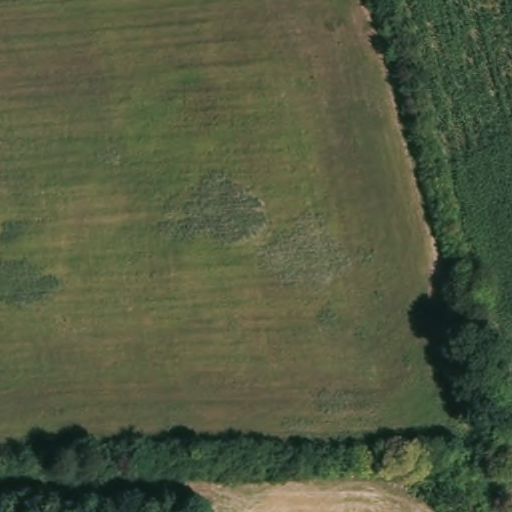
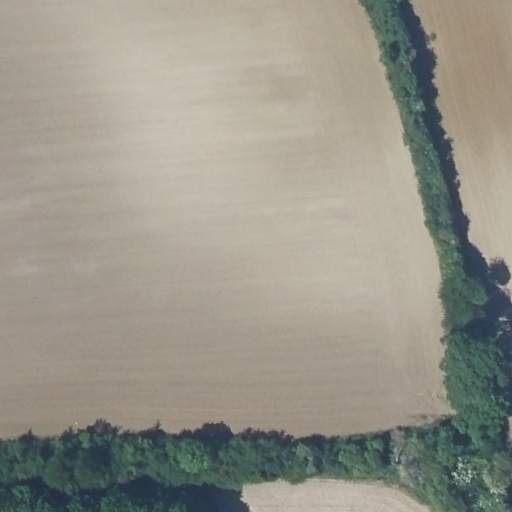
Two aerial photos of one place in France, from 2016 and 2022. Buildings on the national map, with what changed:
[]

